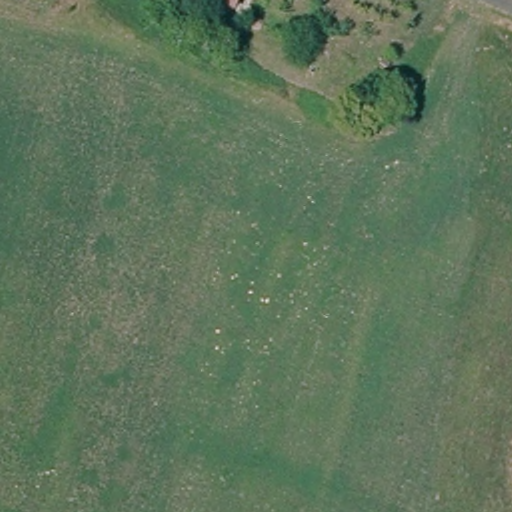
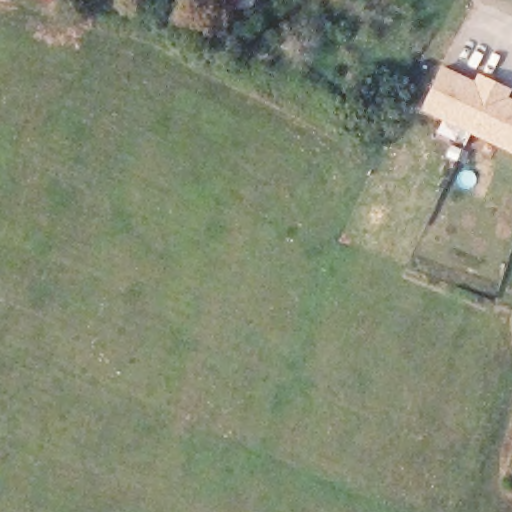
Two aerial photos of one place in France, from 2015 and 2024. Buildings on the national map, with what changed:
demolished [(46,2),(39,0),(47,0),(46,2)]
unchanged [(236,10),(214,0),(240,0),(236,10)]
new [(472,81),(476,73),(511,89),(507,96),(512,99),(512,154),(418,109),(441,65),(472,81)]

